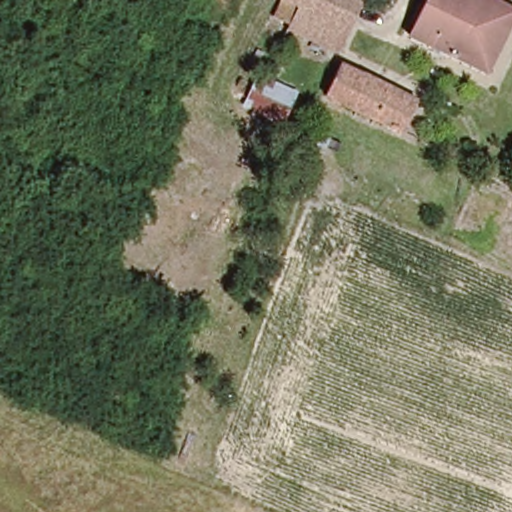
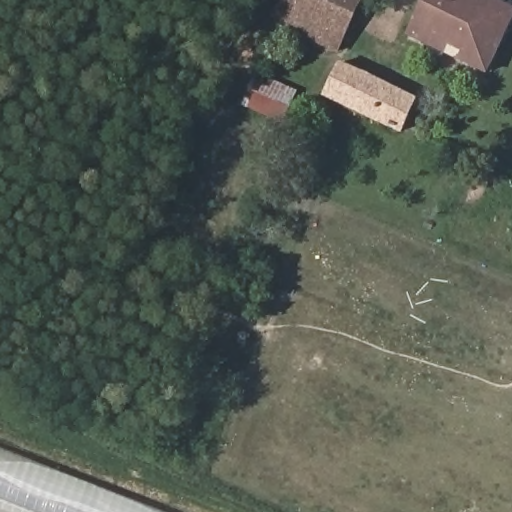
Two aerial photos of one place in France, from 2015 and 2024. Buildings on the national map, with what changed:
unchanged [(291,25),(302,1),(301,0),(362,0),(342,47),(291,25)]
unchanged [(417,40),(434,0),(496,0),(512,8),(512,13),(486,73),(417,40)]
unchanged [(402,131),(324,97),(340,61),(418,97),(402,131)]
unchanged [(281,125),(240,108),(257,72),(298,91),(281,125)]
new [(163,512),(0,512),(0,448),(163,512)]

